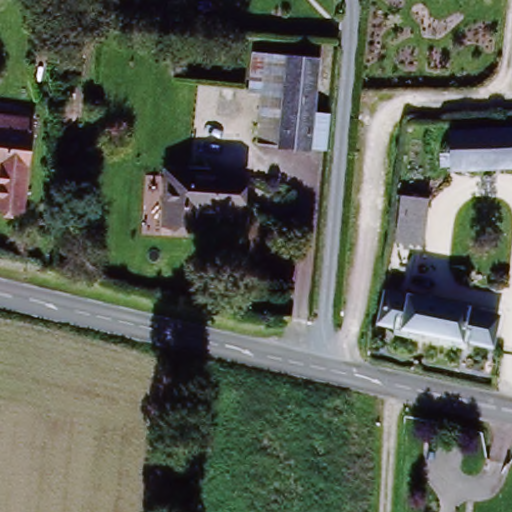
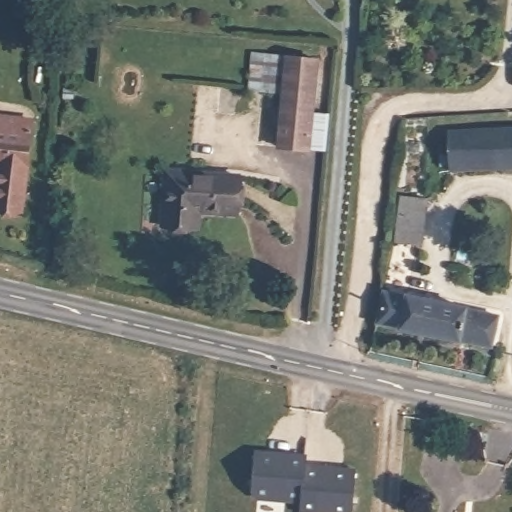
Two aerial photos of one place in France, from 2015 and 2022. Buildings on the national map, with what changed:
unchanged [(316,110),(326,110),(324,152),(274,147),(258,146),(261,94),(249,93),(253,56),(318,56),(316,110)]
unchanged [(23,127),(23,142),(32,143),(29,170),(0,166),(0,139),(5,140),(8,125),(23,127)]
unchanged [(451,169),(451,130),(512,127),(512,167),(451,169)]
unchanged [(0,213),(0,166),(29,170),(23,215),(0,213)]
unchanged [(163,225),(163,172),(234,174),(234,212),(195,211),(195,226),(163,225)]
unchanged [(400,200),(424,205),(417,250),(392,245),(400,200)]
unchanged [(376,286),(498,316),(490,346),(371,319),(376,286)]
new [(308,466),(356,469),(353,510),(352,512),(300,512),(301,505),(251,501),(256,450),(307,457),(308,466)]

